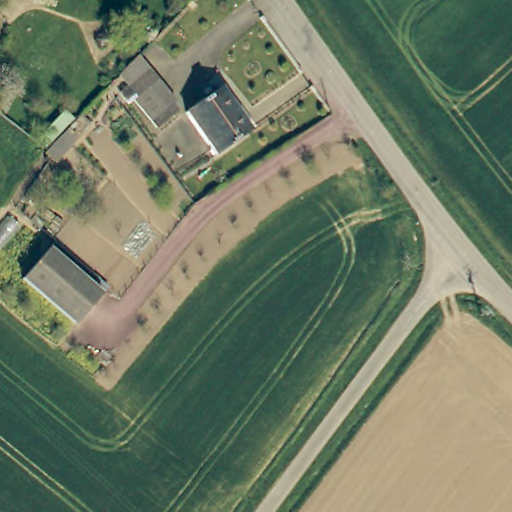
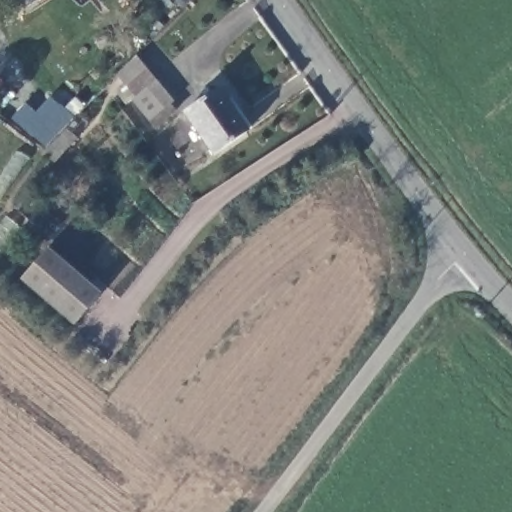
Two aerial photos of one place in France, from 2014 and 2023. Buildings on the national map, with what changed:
unchanged [(135,100),(138,96),(116,75),(134,59),(175,98),(171,103),(176,109),(160,124),(135,100)]
unchanged [(217,155),(185,112),(218,86),(251,130),(217,155)]
new [(49,148),(11,119),(25,103),(35,110),(48,94),(74,116),(57,139),(49,148)]
demolished [(38,159),(57,139),(67,148),(48,168),(38,159)]
new [(57,139),(67,148),(48,168),(38,159),(57,139)]
unchanged [(48,249),(102,289),(79,322),(23,280),(48,249)]

